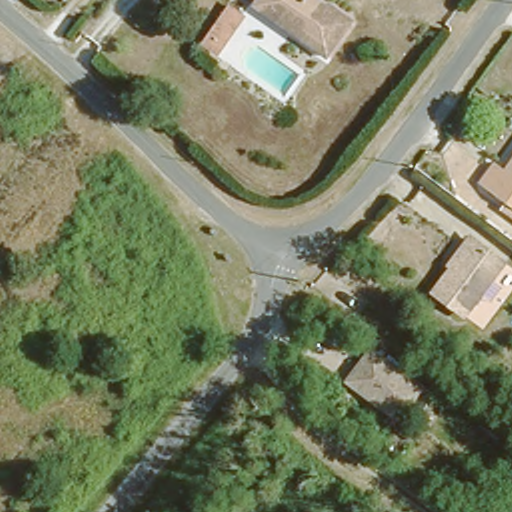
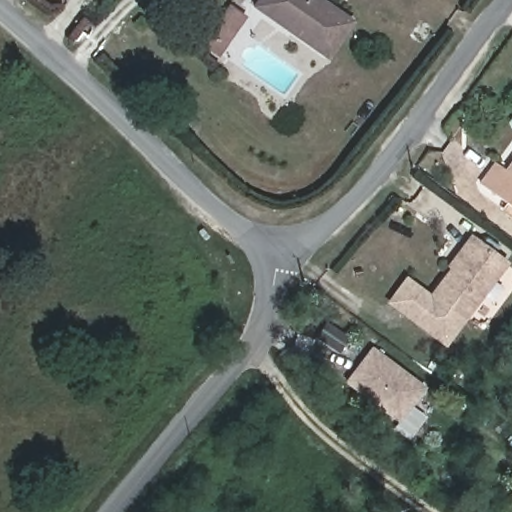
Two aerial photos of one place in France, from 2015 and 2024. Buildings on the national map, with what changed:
unchanged [(246,13),(217,53),(201,40),(230,0),(246,13)]
unchanged [(325,49),(260,0),(332,0),(351,15),(325,49)]
unchanged [(479,179),(495,159),(506,167),(512,159),(512,204),(479,179)]
unchanged [(501,262),(459,314),(430,290),(470,239),(501,262)]
new [(501,262),(505,265),(446,346),(385,302),(406,274),(430,290),(459,314),(501,262)]
unchanged [(322,320),(301,306),(310,292),(331,306),(322,320)]
unchanged [(421,386),(395,418),(345,378),(370,346),(421,386)]

